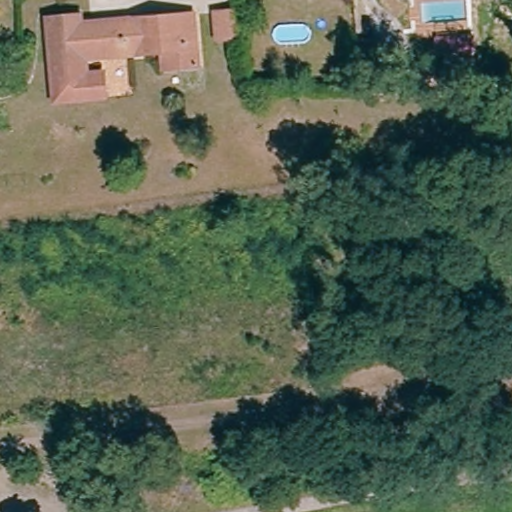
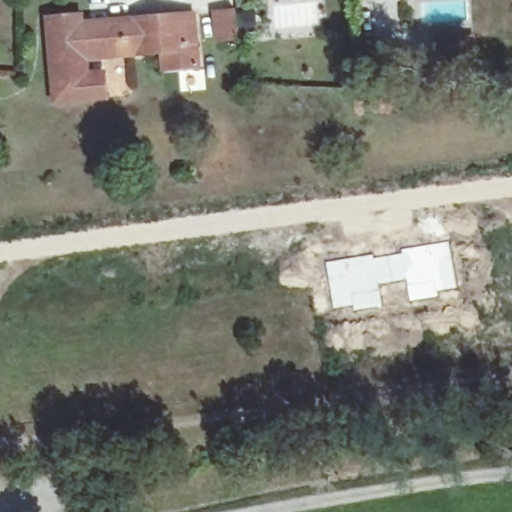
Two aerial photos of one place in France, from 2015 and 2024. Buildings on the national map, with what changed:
unchanged [(92,16),(93,23),(123,22),(127,22),(142,20),(177,17),(179,51),(160,52),(128,55),(124,55),(83,57),(84,77),(49,76),(45,19),(82,17),(92,16)]
unchanged [(193,16),(197,69),(161,71),(160,52),(179,51),(177,17),(193,16)]
unchanged [(228,49),(226,17),(246,16),(249,48),(228,49)]
new [(481,39),(481,54),(466,55),(446,56),(445,41),(465,40),(481,39)]
new [(369,90),(366,57),(365,45),(383,42),(384,56),(388,89),(369,90)]
unchanged [(84,77),(99,78),(100,98),(50,101),(49,76),(84,77)]
new [(448,242),(456,287),(436,291),(438,296),(410,301),(406,280),(378,284),(381,307),(353,311),(353,305),(333,310),(325,262),(372,254),(373,258),(402,254),(402,250),(448,242)]

